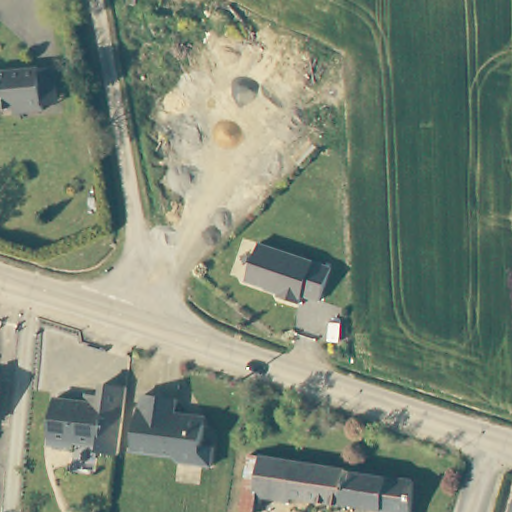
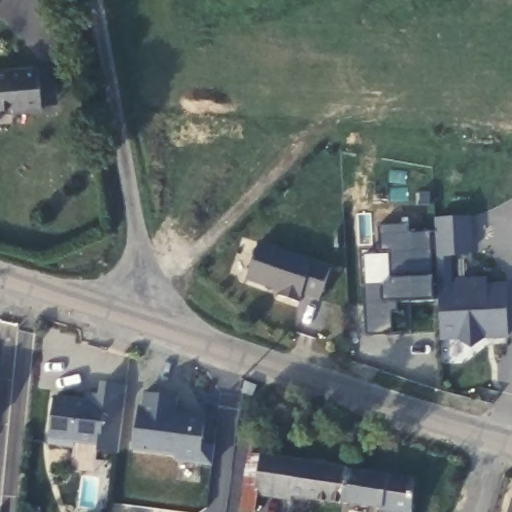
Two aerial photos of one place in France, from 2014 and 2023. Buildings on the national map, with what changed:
unchanged [(14,114),(14,109),(0,111),(0,74),(28,71),(44,70),(47,108),(31,109),(31,113),(14,114)]
new [(434,218),(472,217),(473,254),(451,255),(453,278),(488,277),(488,284),(505,283),(508,338),(440,342),(434,218)]
new [(432,278),(434,300),(399,302),(397,311),(391,312),(391,335),(367,335),(365,287),(382,285),(392,285),(392,279),(390,251),(380,252),(379,227),(407,225),(408,234),(429,234),(432,278)]
unchanged [(333,268),(322,302),(305,296),(302,304),(281,298),(283,293),(248,283),(260,245),(333,268)]
unchanged [(100,448),(75,444),(74,449),(51,447),(57,400),(86,404),(88,397),(102,399),(104,387),(129,390),(120,457),(99,454),(100,448)]
unchanged [(146,407),(148,407),(150,393),(183,398),(181,412),(210,416),(205,445),(218,447),(215,466),(182,461),(178,455),(140,449),(146,407)]
unchanged [(425,483),(420,512),(376,512),(299,502),(298,507),(267,502),(265,512),(248,512),(256,458),(425,483)]

